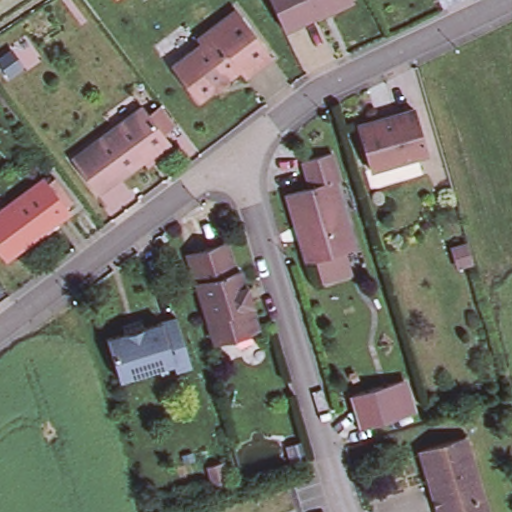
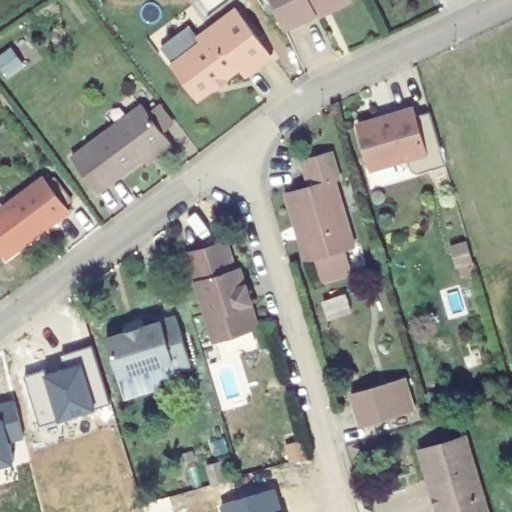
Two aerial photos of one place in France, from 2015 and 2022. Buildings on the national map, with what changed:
unchanged [(334,6),(329,3),(318,9),(319,15),(284,33),(280,25),(268,0),(345,0),(339,4),(334,6)]
unchanged [(201,45),(198,39),(236,11),(271,57),(246,77),(241,71),(198,101),(173,66),(201,45)]
unchanged [(144,107),(169,142),(99,194),(73,160),(144,107)]
unchanged [(416,110),(429,155),(372,171),(361,130),(416,110)]
unchanged [(328,280),(321,258),(311,261),(292,195),(316,189),(308,163),(336,153),(344,180),(341,181),(359,245),(347,250),(354,271),(328,280)]
unchanged [(71,212),(8,259),(0,249),(0,211),(45,179),(71,212)]
unchanged [(227,245),(236,275),(242,272),(259,330),(224,340),(216,316),(208,319),(190,257),(227,245)]
unchanged [(176,317),(191,363),(176,370),(173,358),(120,375),(108,338),(176,317)]
new [(45,371),(46,376),(63,371),(59,357),(90,348),(109,405),(93,410),(93,412),(58,422),(58,421),(38,427),(24,377),(45,371)]
unchanged [(403,381),(411,412),(361,427),(351,395),(403,381)]
new [(25,440),(11,443),(14,458),(0,462),(0,409),(17,405),(25,440)]
unchanged [(469,438),(489,512),(439,512),(421,452),(469,438)]
unchanged [(221,461),(228,483),(213,487),(206,466),(221,461)]
new [(276,491),(282,512),(223,512),(221,506),(276,491)]

